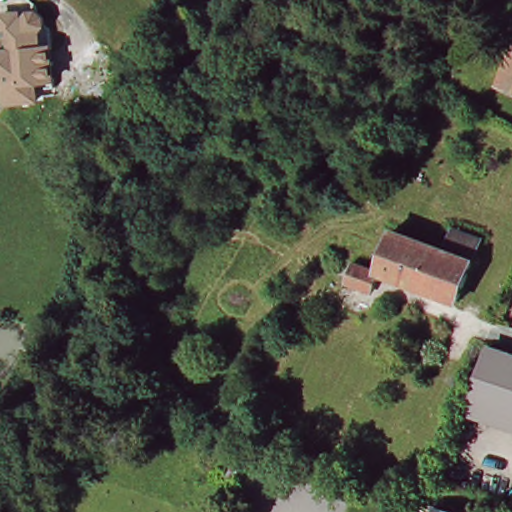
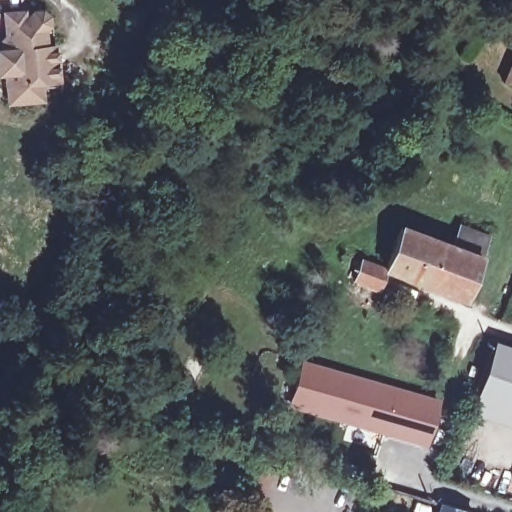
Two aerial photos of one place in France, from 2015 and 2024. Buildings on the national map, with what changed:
unchanged [(5,95),(4,77),(0,77),(0,55),(2,54),(1,45),(5,40),(2,18),(20,16),(21,23),(26,22),(31,16),(38,16),(45,21),(45,28),(40,34),(42,51),(52,50),(55,91),(37,93),(38,103),(18,105),(7,106),(5,95)]
unchanged [(512,87),(503,83),(512,64),(512,87)]
unchanged [(388,257),(400,228),(453,249),(458,237),(463,226),(488,236),(480,259),(462,301),(383,270),(388,257)]
unchanged [(372,287),(353,280),(360,260),(380,268),(372,287)]
unchanged [(497,344),(512,349),(512,413),(477,401),(497,344)]
new [(288,405),(302,362),(440,402),(427,447),(288,405)]
unchanged [(440,512),(442,508),(453,512),(440,512)]

